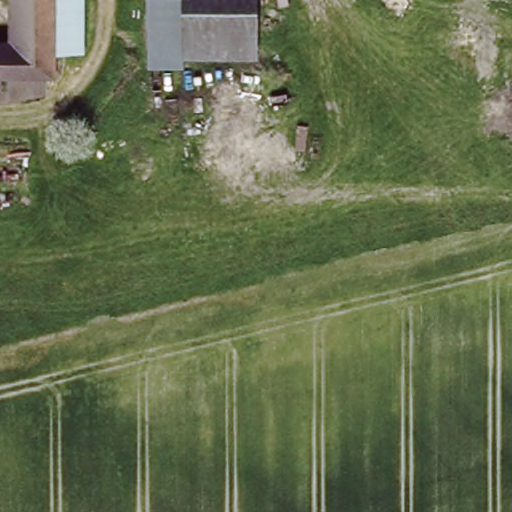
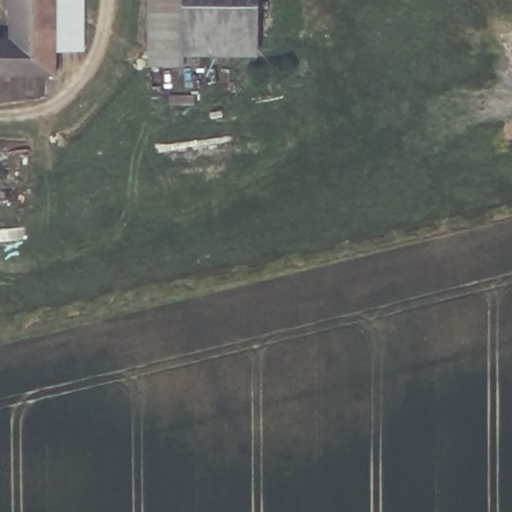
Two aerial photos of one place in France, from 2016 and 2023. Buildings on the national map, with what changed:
unchanged [(63,77),(0,79),(0,27),(2,27),(1,0),(48,0),(50,45),(61,44),(63,77)]
unchanged [(90,43),(61,44),(50,45),(48,0),(89,0),(90,43)]
unchanged [(253,51),(180,57),(180,69),(157,68),(159,0),(251,0),(253,51)]

